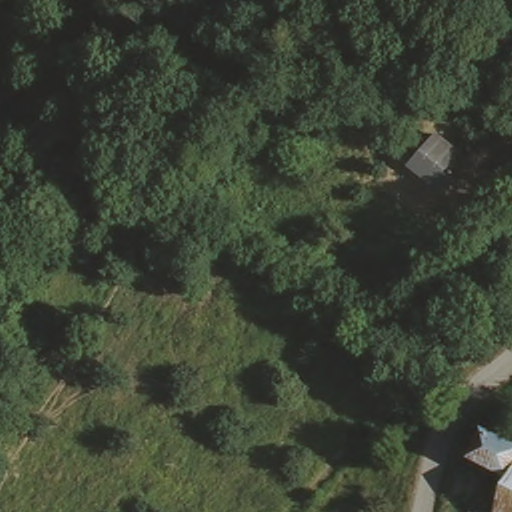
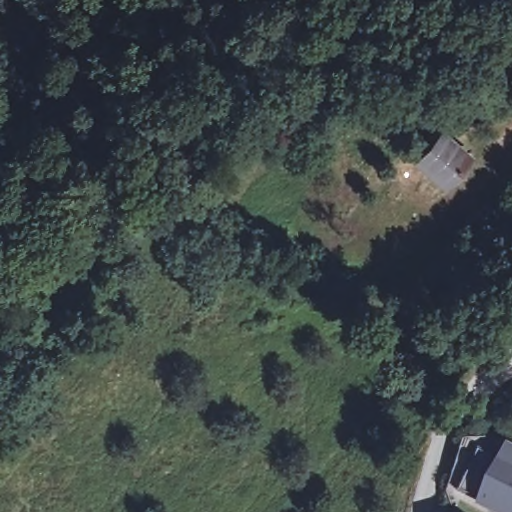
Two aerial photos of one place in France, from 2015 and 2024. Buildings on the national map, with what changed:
unchanged [(464,158),(442,181),(417,154),(439,133),(464,158)]
demolished [(509,461),(497,484),(463,464),(474,442),(509,461)]
new [(479,454),(501,464),(510,445),(512,446),(512,476),(509,474),(501,493),(499,496),(491,512),(486,512),(479,509),(482,501),(463,492),(479,454)]
unchanged [(491,512),(499,496),(501,493),(509,474),(512,476),(512,512),(491,512)]

